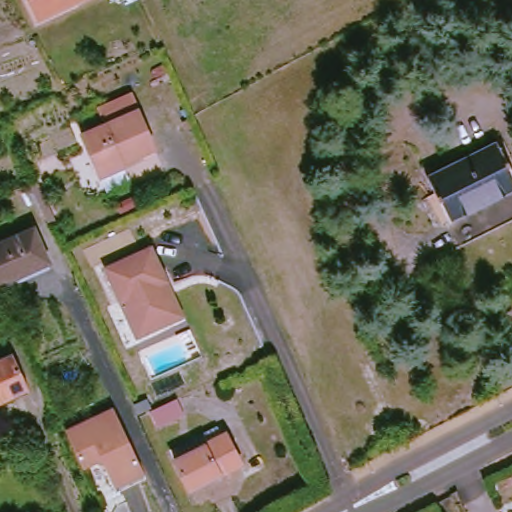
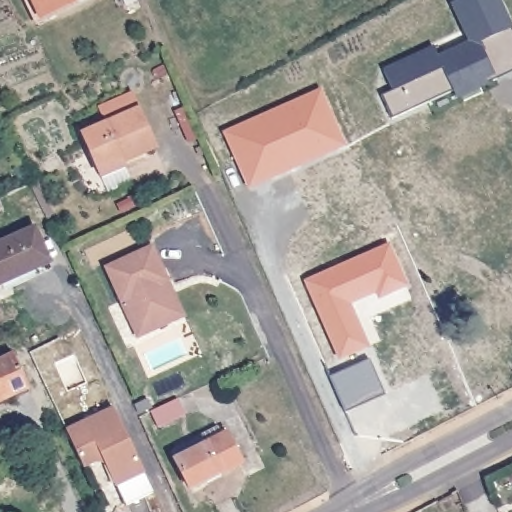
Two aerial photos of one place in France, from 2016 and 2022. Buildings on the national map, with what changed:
unchanged [(38,20),(28,0),(79,0),(38,20)]
new [(464,0),(476,0),(477,1),(480,0),(496,0),(512,33),(512,69),(485,82),(488,87),(456,100),(453,92),(392,120),(381,96),(392,91),(383,71),(432,48),(439,60),(470,46),(451,6),(464,0)]
new [(317,90),(344,146),(328,154),(322,140),(291,153),(297,166),(272,178),(263,155),(239,163),(225,133),(317,90)]
unchanged [(112,130),(105,115),(136,100),(161,154),(120,173),(118,168),(103,175),(87,142),(112,130)]
unchanged [(462,247),(427,179),(497,143),(512,172),(512,221),(462,247)]
unchanged [(53,267),(0,291),(0,252),(39,235),(53,267)]
new [(406,285),(381,298),(376,290),(349,305),(365,346),(338,358),(302,276),(390,243),(406,285)]
unchanged [(173,322),(137,338),(106,269),(151,248),(167,282),(183,317),(173,322)]
unchanged [(30,389),(0,403),(0,361),(13,355),(30,389)]
unchanged [(177,399),(185,415),(157,427),(150,412),(177,399)]
unchanged [(150,473),(120,487),(110,464),(102,461),(88,468),(71,431),(119,409),(150,473)]
unchanged [(175,460),(226,434),(241,464),(190,491),(175,460)]

